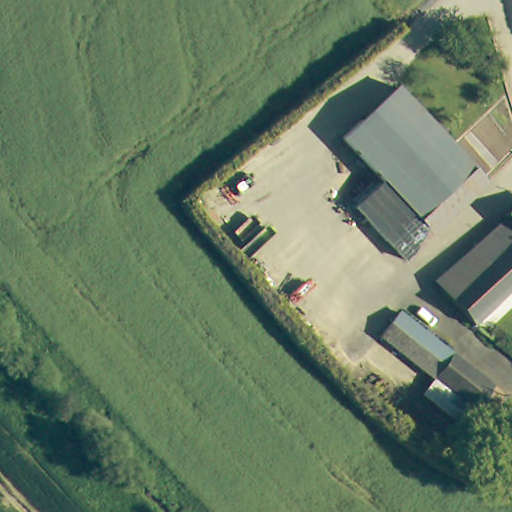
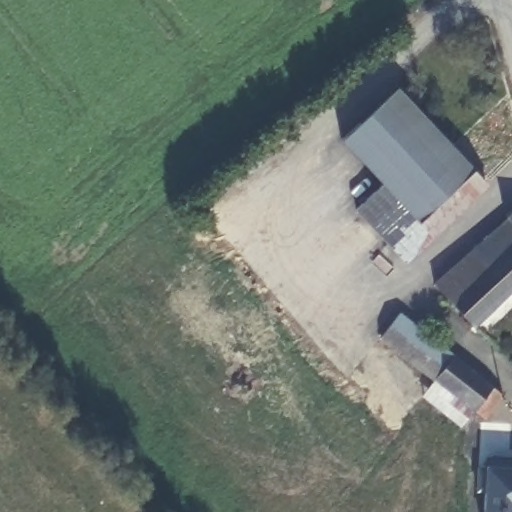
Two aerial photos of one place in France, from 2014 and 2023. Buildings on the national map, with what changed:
unchanged [(485,174),(405,251),(354,194),(380,169),(340,126),(393,78),(485,174)]
unchanged [(511,217),(512,215),(512,218),(511,217)]
unchanged [(479,328),(446,290),(440,283),(492,239),(493,239),(512,221),(512,296),(479,328)]
unchanged [(420,323),(457,353),(462,356),(511,395),(492,419),(445,383),(430,371),(390,339),(410,314),(420,323)]
unchanged [(479,436),(432,398),(445,383),(492,419),(479,436)]
new [(486,463),(487,455),(512,457),(512,512),(484,512),(486,463)]

